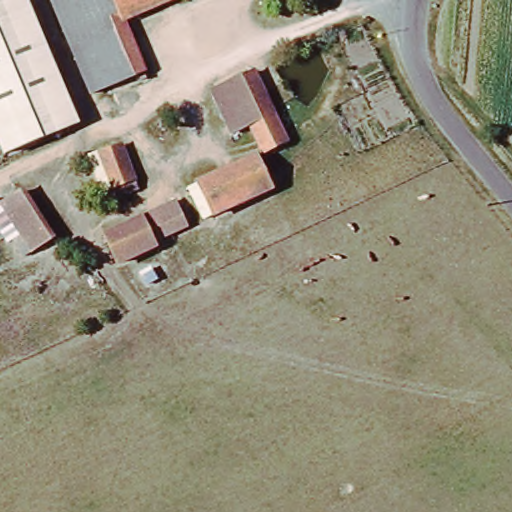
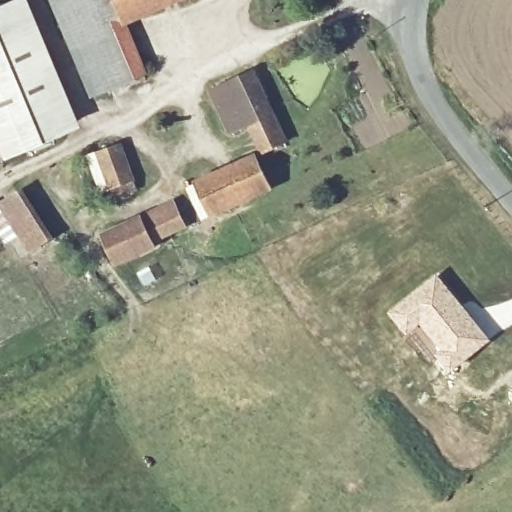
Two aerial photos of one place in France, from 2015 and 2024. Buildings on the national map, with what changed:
unchanged [(7,0),(19,0),(72,126),(12,152),(0,123),(0,3),(7,0)]
unchanged [(134,67),(84,89),(47,0),(153,0),(113,17),(134,67)]
unchanged [(213,86),(228,80),(225,75),(248,66),(279,137),(256,147),(241,113),(227,120),(213,86)]
unchanged [(115,193),(96,152),(118,142),(136,183),(115,193)]
unchanged [(206,213),(191,179),(251,152),(266,187),(206,213)]
unchanged [(0,230),(0,198),(21,187),(50,236),(13,255),(0,230)]
unchanged [(99,229),(129,216),(132,224),(166,206),(176,225),(142,241),(144,251),(117,263),(99,229)]
new [(437,272),(493,339),(455,371),(420,325),(407,335),(387,311),(437,272)]

